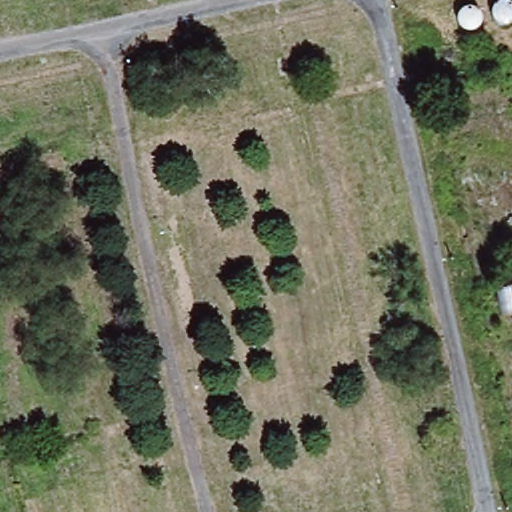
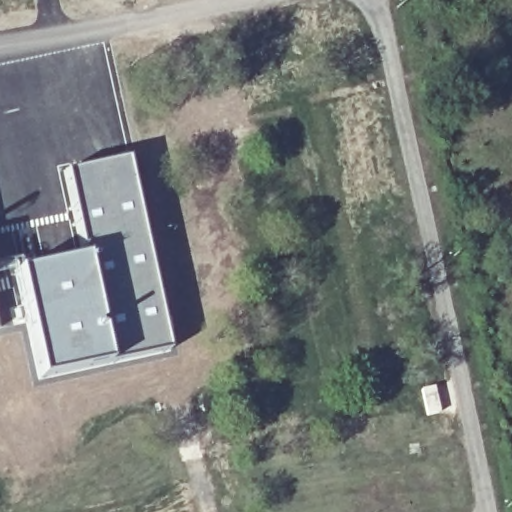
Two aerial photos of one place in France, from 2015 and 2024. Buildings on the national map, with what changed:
new [(128,157),(169,349),(108,363),(82,255),(70,204),(64,170),(128,157)]
new [(82,255),(108,363),(37,379),(24,322),(14,269),(82,255)]
new [(24,322),(1,329),(0,324),(0,272),(14,269),(24,322)]
new [(0,329),(0,324),(1,329),(0,329)]

